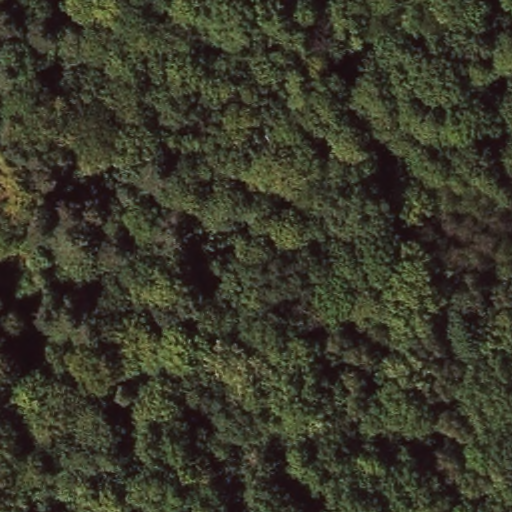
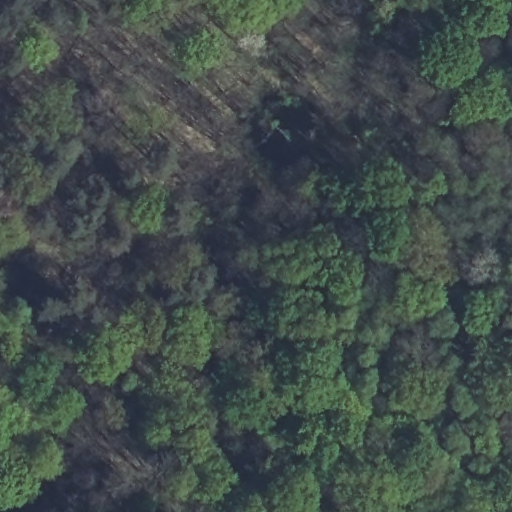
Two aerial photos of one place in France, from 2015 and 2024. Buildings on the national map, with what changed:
[]

